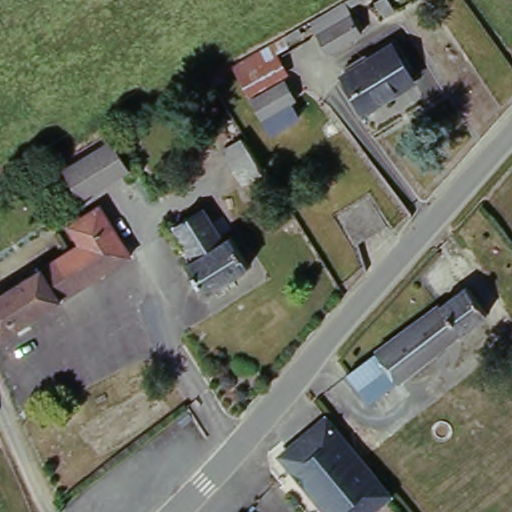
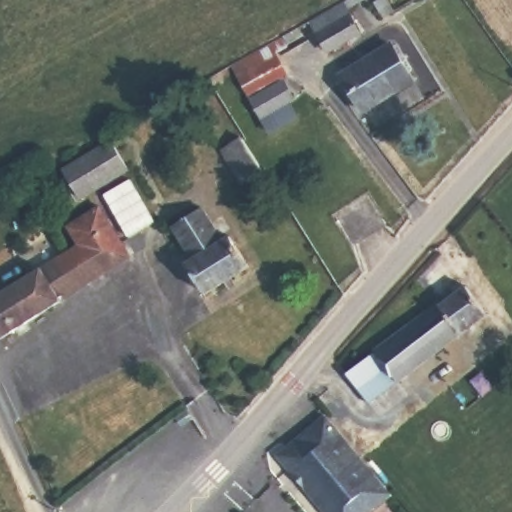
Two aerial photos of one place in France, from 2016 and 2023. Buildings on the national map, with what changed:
unchanged [(367,34),(335,52),(331,46),(329,48),(325,40),(327,39),(317,20),(349,2),(367,34)]
unchanged [(272,45),(288,73),(250,94),(235,66),(272,45)]
unchanged [(356,72),(368,64),(375,60),(378,64),(400,50),(423,85),(374,116),(352,81),(358,77),(356,72)]
unchanged [(221,71),(226,79),(214,86),(210,78),(221,71)]
unchanged [(284,81),(295,100),(291,103),(299,117),(272,132),(253,98),(284,81)]
unchanged [(116,140),(134,170),(86,197),(67,169),(116,140)]
unchanged [(247,144),(266,177),(245,190),(224,157),(247,144)]
unchanged [(341,222),(371,203),(385,228),(355,247),(341,222)]
unchanged [(210,208),(229,237),(198,256),(179,226),(210,208)]
unchanged [(72,250),(63,236),(104,211),(135,260),(7,342),(0,332),(0,297),(72,250)]
unchanged [(229,237),(238,232),(261,267),(211,295),(191,263),(198,256),(229,237)]
unchanged [(465,282),(487,312),(400,383),(377,354),(465,282)]
unchanged [(400,383),(372,405),(351,377),(377,354),(400,383)]
unchanged [(329,512),(285,461),(330,422),(396,498),(379,512),(329,512)]

